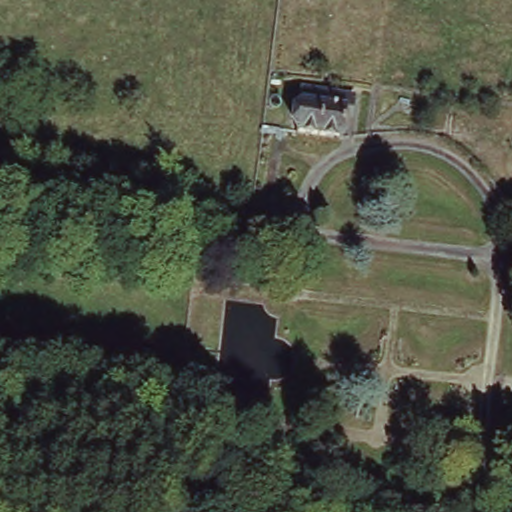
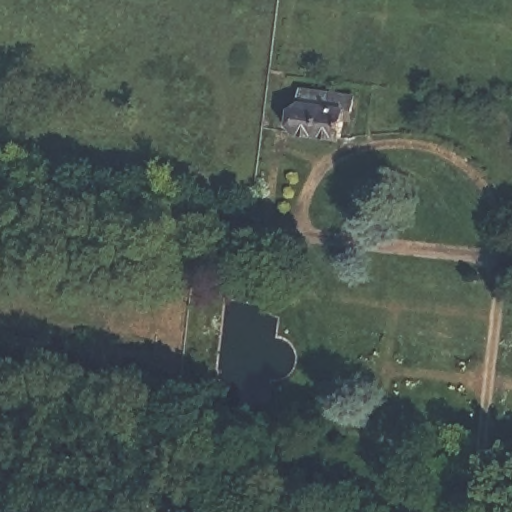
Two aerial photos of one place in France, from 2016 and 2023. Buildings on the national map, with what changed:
unchanged [(299,82),(322,85),(352,89),(350,102),(343,102),(342,111),(333,110),(332,125),(294,123),(298,97),(299,82)]

